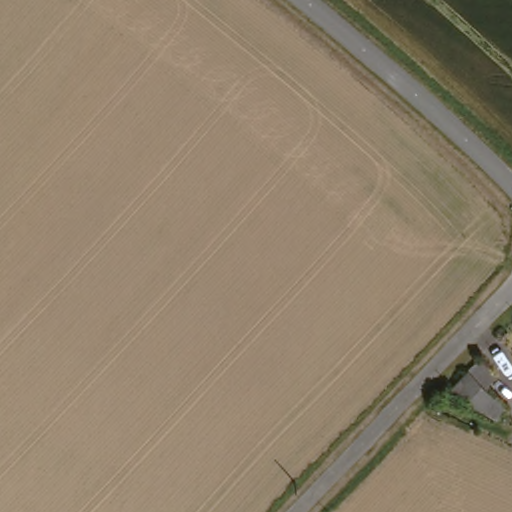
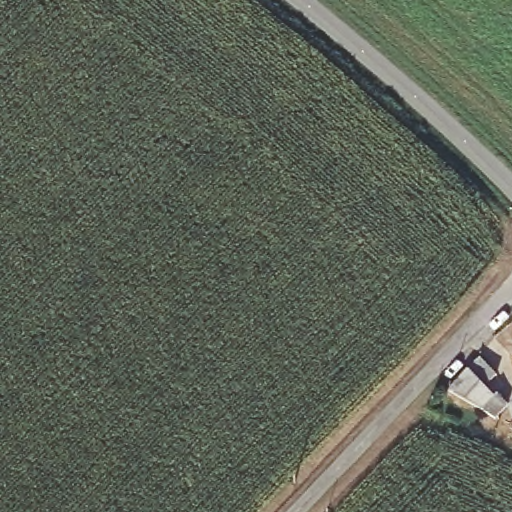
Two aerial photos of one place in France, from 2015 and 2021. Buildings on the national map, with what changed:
unchanged [(469,365),(472,368),(478,362),(492,377),(483,388),(488,392),(474,409),(464,403),(443,390),(469,365)]

